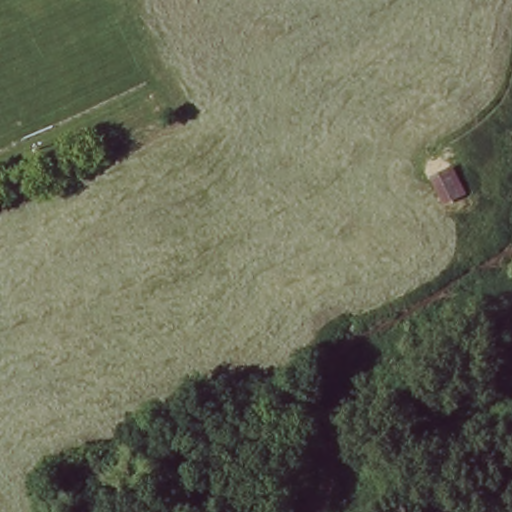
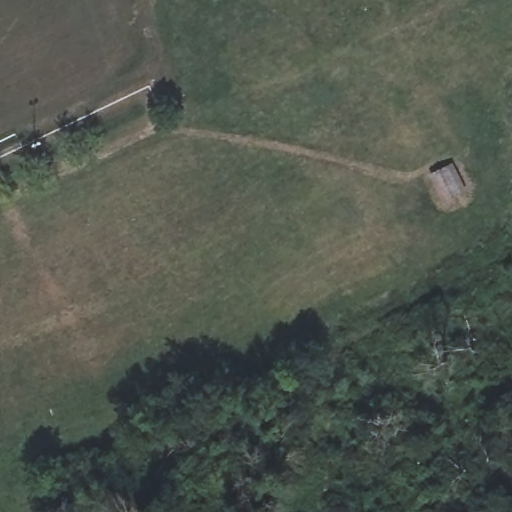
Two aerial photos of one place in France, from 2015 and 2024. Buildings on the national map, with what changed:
unchanged [(467,194),(443,204),(430,174),(444,167),(454,164),(467,194)]

